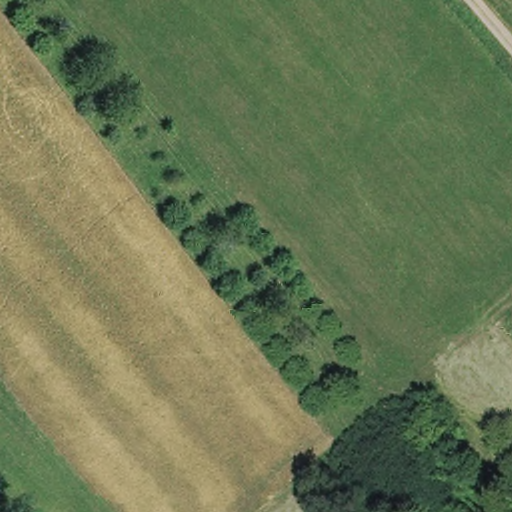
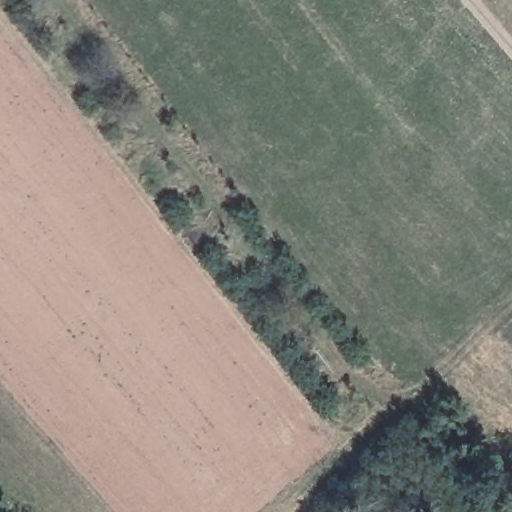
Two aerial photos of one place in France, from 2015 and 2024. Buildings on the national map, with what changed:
unchanged [(475,481),(463,491),(443,468),(456,458),(475,481)]

